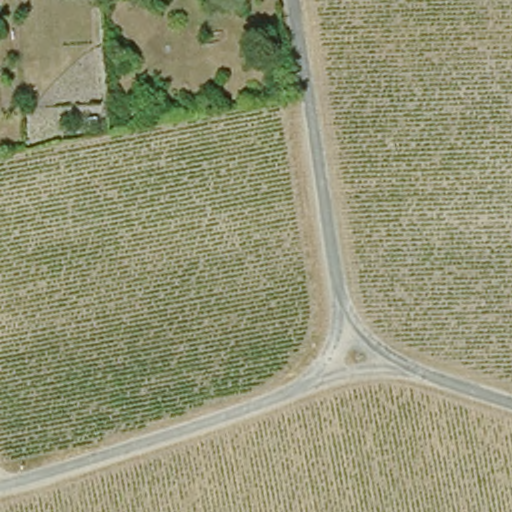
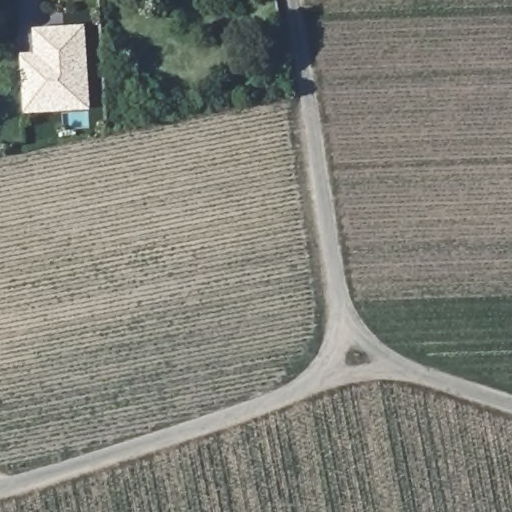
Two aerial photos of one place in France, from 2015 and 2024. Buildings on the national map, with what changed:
unchanged [(0,7),(0,0),(2,0),(0,7)]
new [(87,26),(90,111),(24,115),(21,54),(35,53),(33,29),(87,26)]

